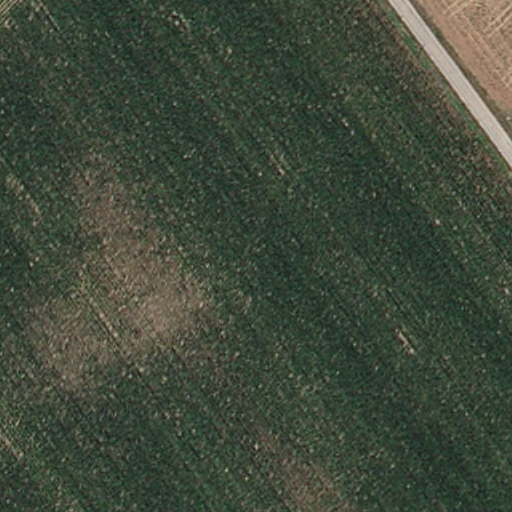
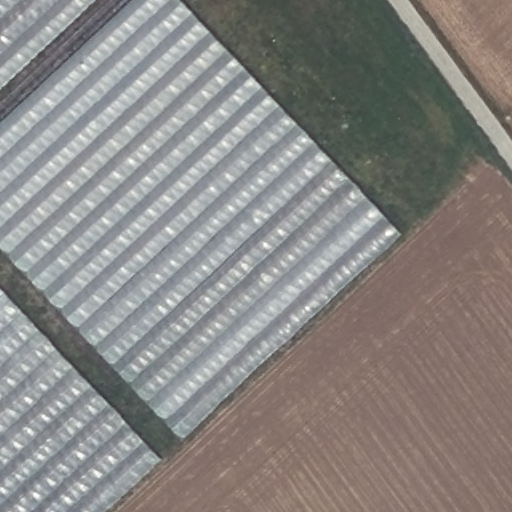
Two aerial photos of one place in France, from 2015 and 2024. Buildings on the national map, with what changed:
new [(0,240),(0,0),(184,0),(405,235),(186,437),(0,240)]
new [(109,512),(0,512),(0,285),(166,460),(109,512)]

